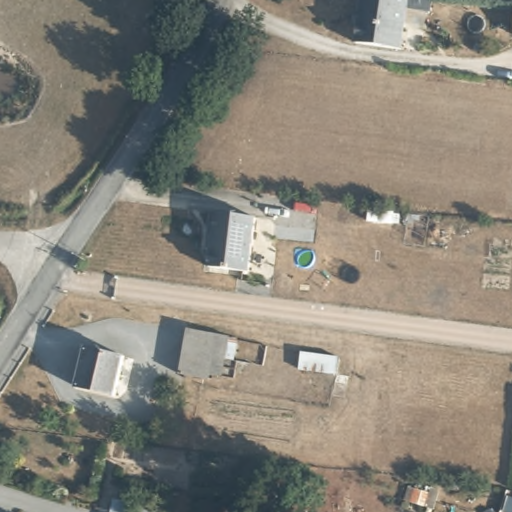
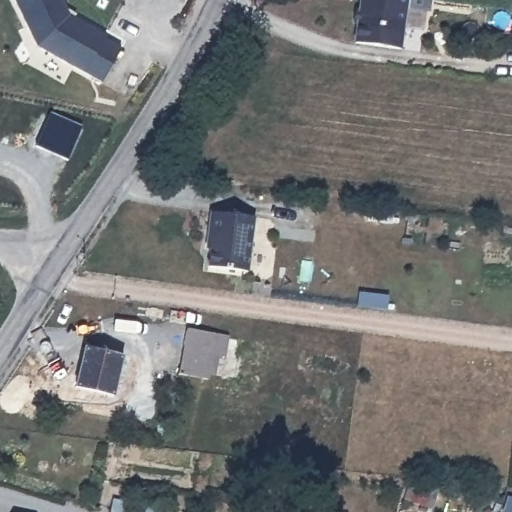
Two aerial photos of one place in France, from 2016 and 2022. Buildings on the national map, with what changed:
new [(71,15),(107,35),(106,39),(121,46),(103,82),(37,46),(14,0),(63,0),(71,15)]
unchanged [(395,43),(351,36),(353,15),(346,14),(347,3),(356,4),(356,0),(401,0),(395,43)]
new [(52,112),(82,126),(69,160),(37,145),(52,112)]
unchanged [(211,235),(214,212),(256,215),(251,269),(212,265),(214,249),(210,249),(211,235)]
unchanged [(222,330),(215,377),(186,375),(193,325),(222,330)]
unchanged [(124,350),(117,391),(79,385),(86,344),(124,350)]
unchanged [(13,512),(16,508),(22,512),(13,512)]
unchanged [(108,512),(109,511),(111,512),(108,512)]

